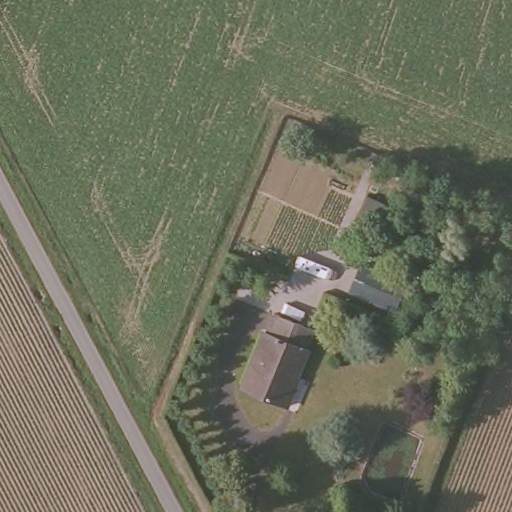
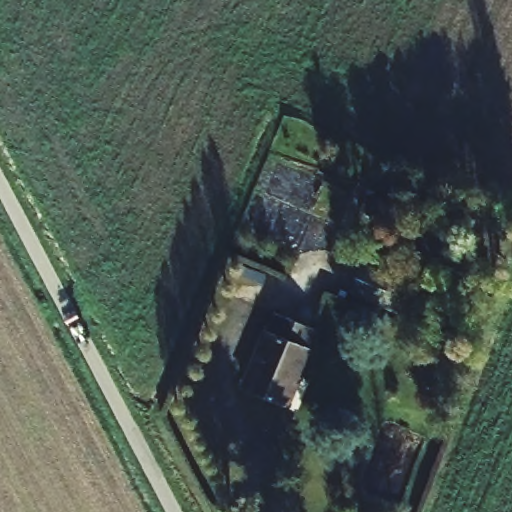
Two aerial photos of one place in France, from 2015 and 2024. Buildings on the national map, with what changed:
unchanged [(401,199),(391,225),(362,212),(371,187),(401,199)]
unchanged [(415,278),(404,312),(359,295),(374,260),(415,278)]
unchanged [(285,405),(244,385),(277,313),(318,331),(285,405)]

